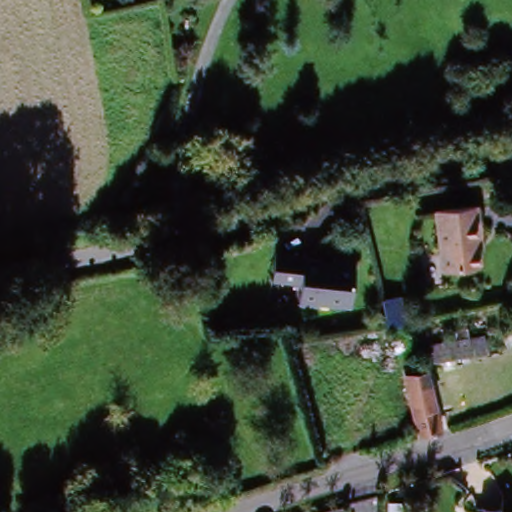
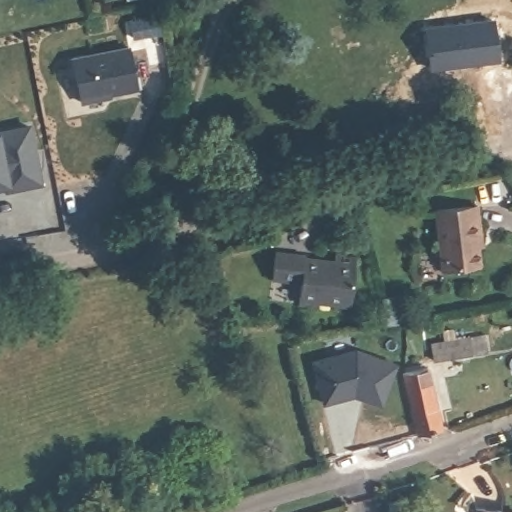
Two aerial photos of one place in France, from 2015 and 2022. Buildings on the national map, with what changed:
new [(129,47),(139,90),(111,96),(112,99),(80,105),(69,59),(129,47)]
new [(43,185),(8,193),(6,187),(0,189),(0,132),(30,125),(43,185)]
unchanged [(484,232),(479,234),(483,263),(445,268),(437,209),(479,203),(484,232)]
unchanged [(279,249),(304,252),(304,255),(336,260),(337,254),(359,257),(351,306),(321,301),(319,306),(299,301),(301,281),(275,277),(279,249)]
demolished [(386,356),(341,366),(334,338),(380,331),(386,356)]
unchanged [(442,357),(439,341),(472,334),(476,351),(442,357)]
new [(356,347),(398,364),(382,407),(354,396),(323,405),(311,361),(356,347)]
unchanged [(423,436),(409,376),(432,371),(448,432),(423,436)]

